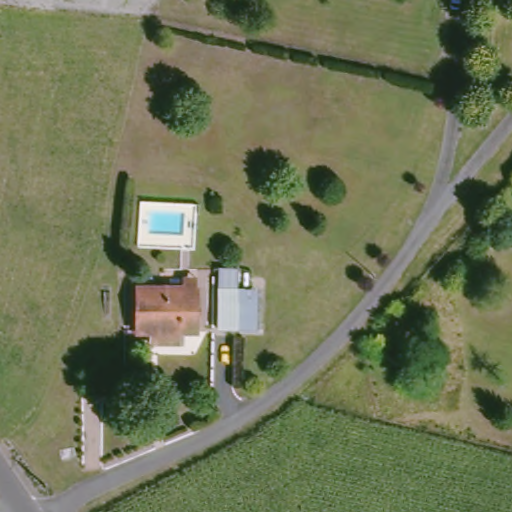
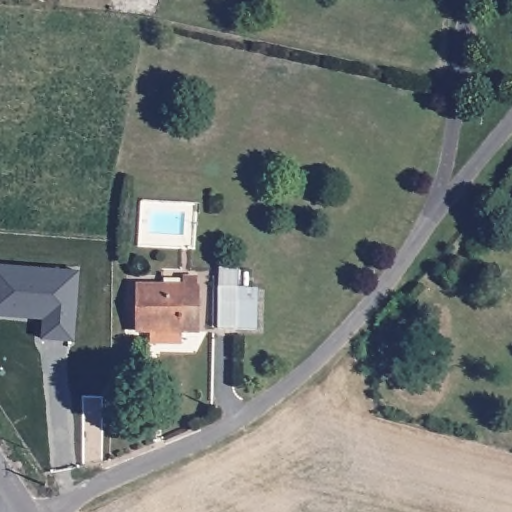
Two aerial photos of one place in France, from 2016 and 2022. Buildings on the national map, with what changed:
new [(0,265),(21,267),(45,269),(76,272),(71,341),(40,337),(41,318),(26,317),(18,316),(0,315),(0,265)]
unchanged [(151,341),(152,330),(138,328),(142,283),(201,287),(198,333),(183,332),(182,343),(151,341)]
unchanged [(221,324),(225,285),(243,286),(241,300),(260,302),(258,327),(239,326),(221,324)]

